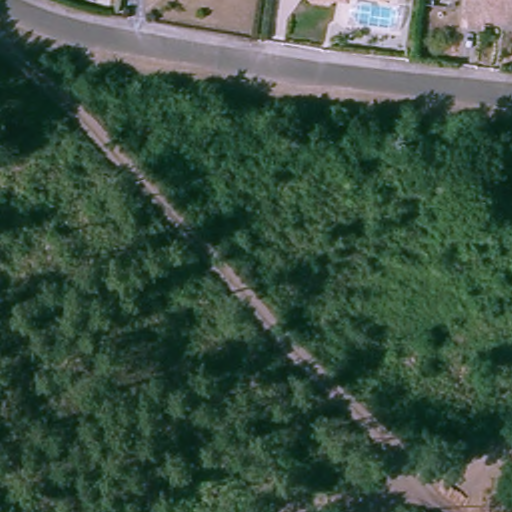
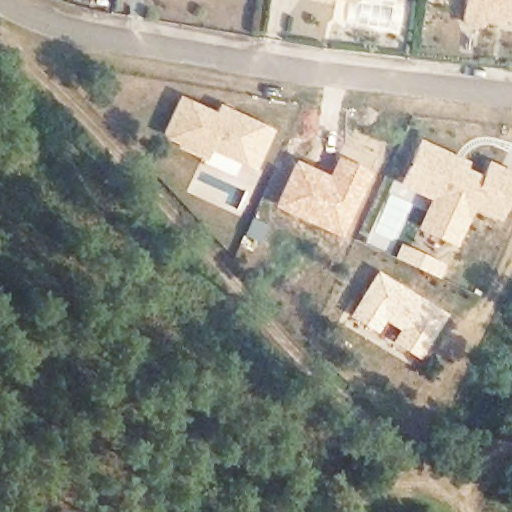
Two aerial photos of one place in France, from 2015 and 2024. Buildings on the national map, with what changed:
unchanged [(476,20),(457,16),(459,0),(512,0),(512,17),(477,12),(476,20)]
new [(181,140),(183,136),(166,129),(182,94),(218,110),(221,101),(276,126),(259,163),(242,155),(234,170),(203,156),(205,150),(181,140)]
new [(428,208),(435,194),(402,180),(420,139),(454,153),(465,158),(462,164),(483,173),(490,158),(502,164),(512,168),(512,183),(500,211),(484,205),(473,200),(463,223),(456,237),(422,223),(428,208)]
new [(293,158),(327,173),(335,155),(370,170),(339,236),(271,204),(293,158)]
new [(409,245),(432,255),(427,268),(404,257),(409,245)]
new [(375,269),(446,313),(418,358),(389,340),(396,330),(383,321),(375,332),(347,314),(375,269)]

